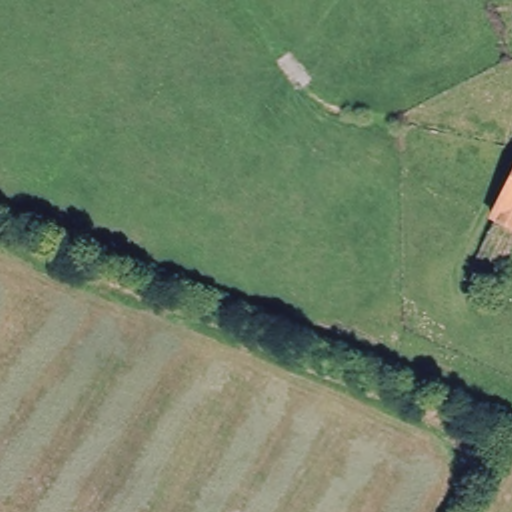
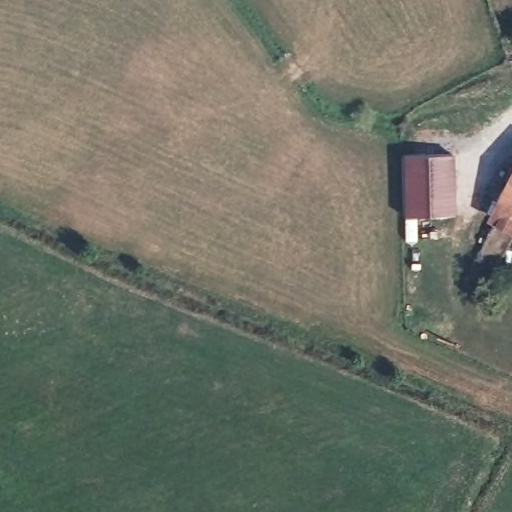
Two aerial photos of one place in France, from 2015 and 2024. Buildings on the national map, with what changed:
new [(403,215),(402,155),(453,154),(454,214),(403,215)]
unchanged [(497,207),(512,178),(512,216),(497,207)]

